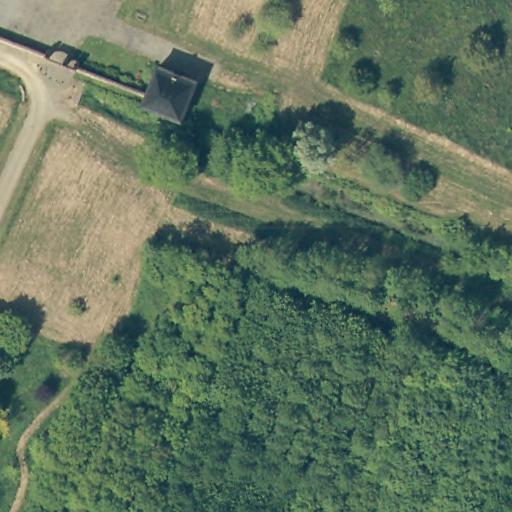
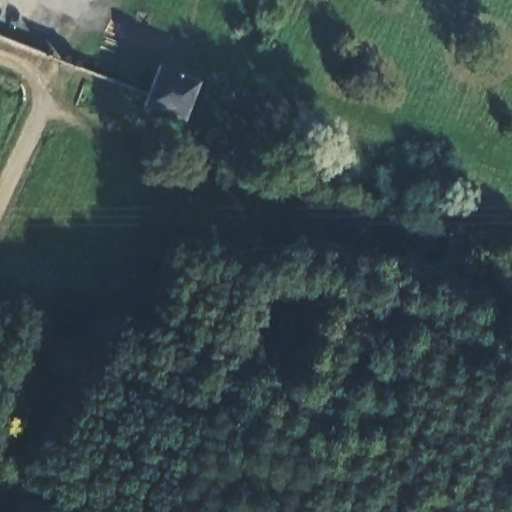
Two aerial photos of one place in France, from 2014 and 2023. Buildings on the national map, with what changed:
unchanged [(3,0),(0,8),(0,0),(3,0)]
unchanged [(182,119),(144,104),(158,65),(196,80),(182,119)]

